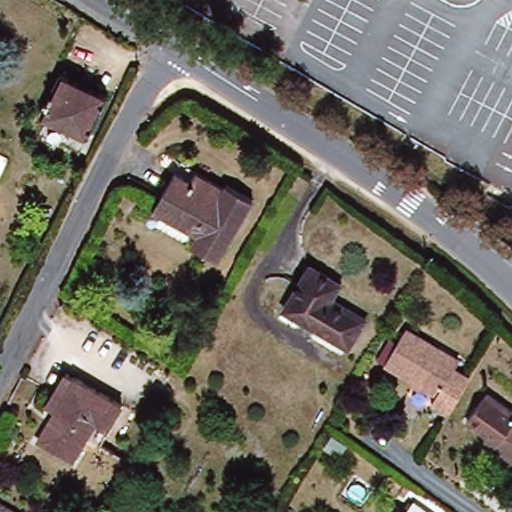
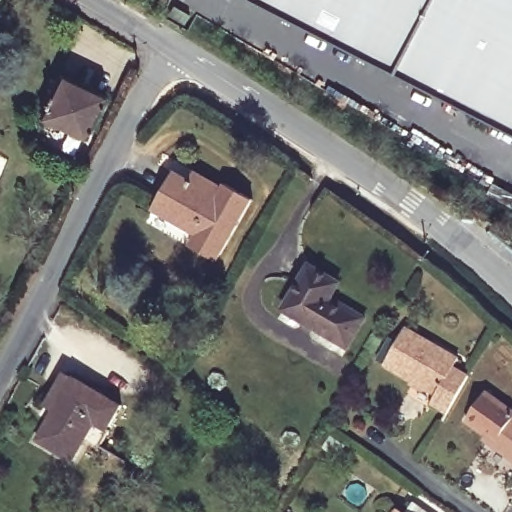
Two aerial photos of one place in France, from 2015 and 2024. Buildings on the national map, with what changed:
new [(512,0),(512,133),(256,0),(512,0)]
unchanged [(68,75),(110,96),(89,137),(47,116),(68,75)]
unchanged [(226,185),(255,202),(219,265),(189,247),(195,237),(152,214),(175,172),(191,180),(196,172),(209,180),(224,189),(226,185)]
unchanged [(350,346),(285,306),(311,261),(341,280),(332,295),(367,316),(350,346)]
unchanged [(472,376),(452,413),(437,405),(441,396),(388,366),(410,330),(461,360),(457,367),(472,376)]
unchanged [(128,405),(115,426),(118,428),(107,446),(93,437),(80,458),(45,437),(62,409),(55,404),(60,394),(61,395),(74,372),(128,405)]
unchanged [(470,421),(490,393),(512,408),(512,456),(497,446),(486,438),(490,434),(470,421)]

